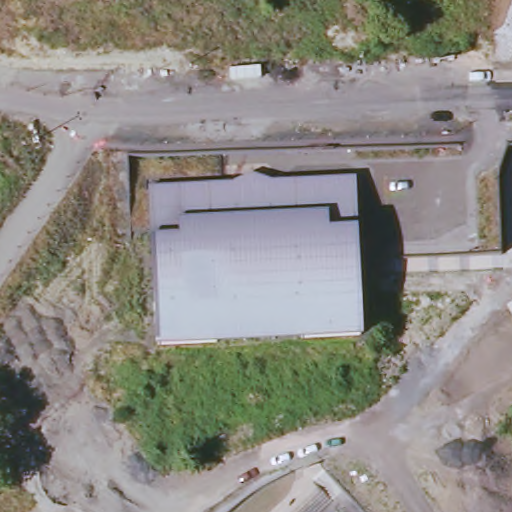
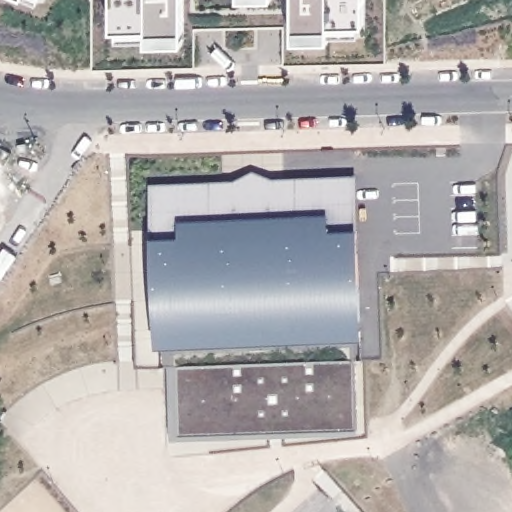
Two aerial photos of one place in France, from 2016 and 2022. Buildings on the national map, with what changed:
new [(15,0),(23,0),(21,3),(15,0)]
new [(39,0),(41,0),(40,1),(39,0)]
new [(148,43),(148,26),(112,29),(111,0),(182,0),(183,42),(148,43)]
new [(330,39),(294,41),(292,0),(366,0),(366,22),(330,20),(330,39)]
unchanged [(231,183),(251,169),(282,181),(359,179),(367,342),(156,345),(148,185),(231,183)]
new [(356,360),(359,430),(283,432),(282,425),(269,425),(269,433),(238,434),(237,426),(177,428),(175,367),(356,360)]

